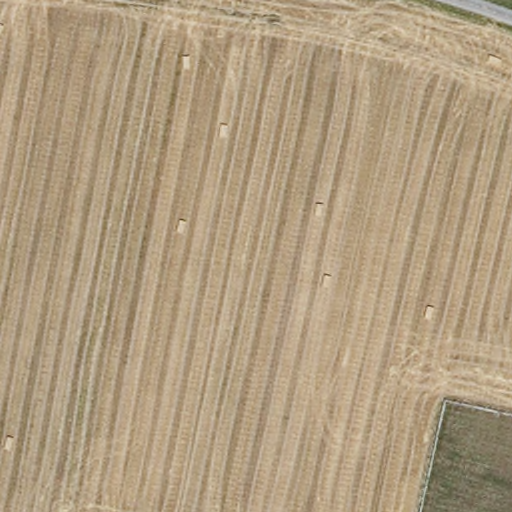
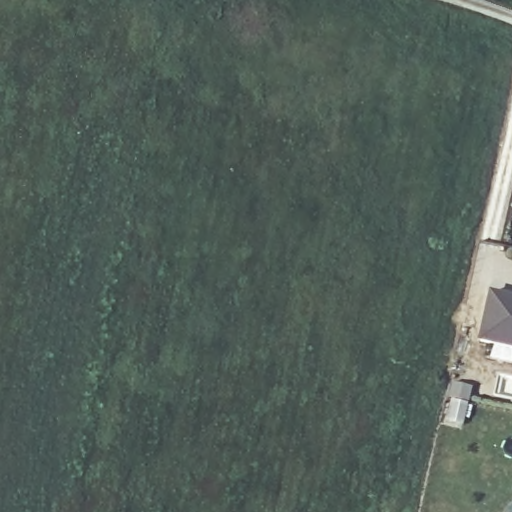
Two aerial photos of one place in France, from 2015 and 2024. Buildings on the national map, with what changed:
new [(512,300),(512,365),(484,359),(487,344),(477,342),(487,294),(512,300)]

